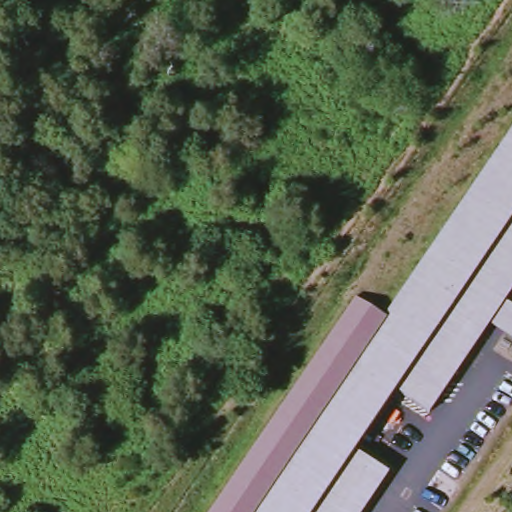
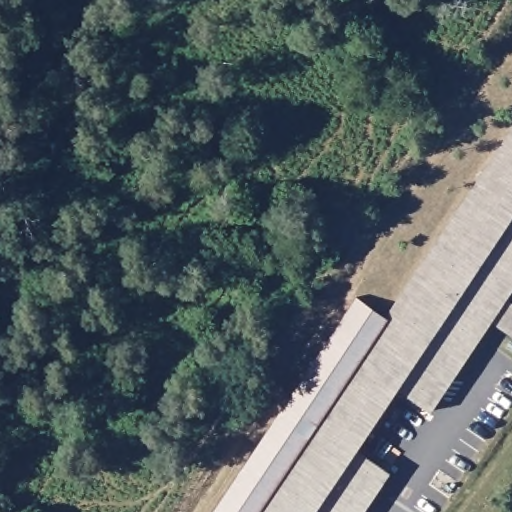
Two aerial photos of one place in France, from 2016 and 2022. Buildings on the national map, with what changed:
unchanged [(488,322),(430,410),(396,387),(356,447),(389,471),(362,512),(210,512),(355,295),(384,314),(512,123),(512,338),(488,322)]

